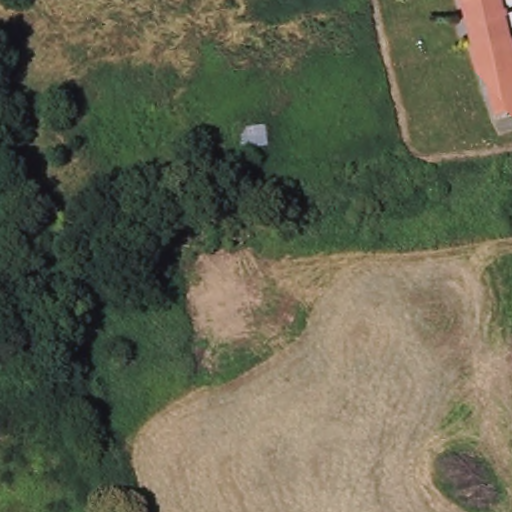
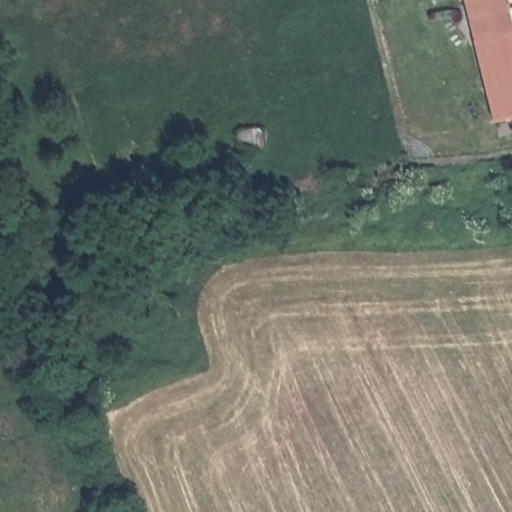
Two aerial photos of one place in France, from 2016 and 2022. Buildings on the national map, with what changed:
unchanged [(468,0),(509,0),(512,11),(512,116),(497,119),(487,78),(468,0)]

